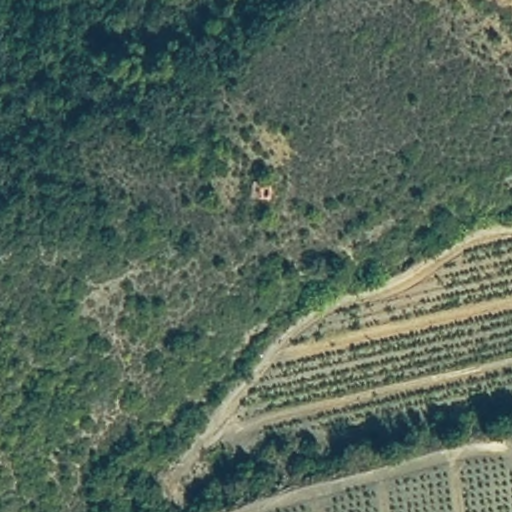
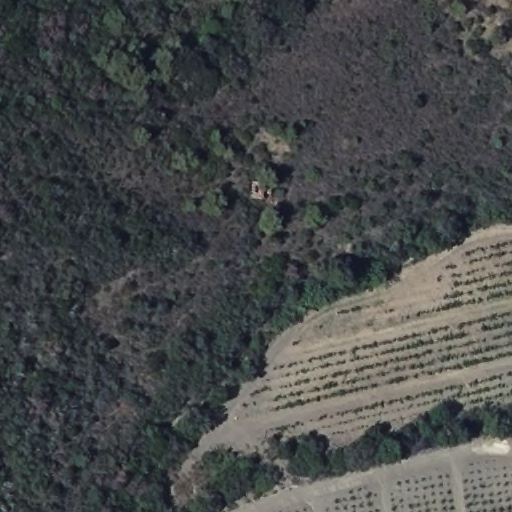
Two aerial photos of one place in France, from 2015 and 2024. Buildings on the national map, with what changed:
unchanged [(275,173),(275,197),(251,199),(253,173),(275,173)]

